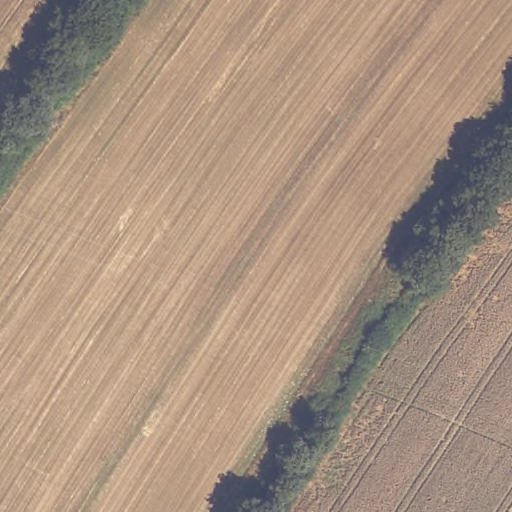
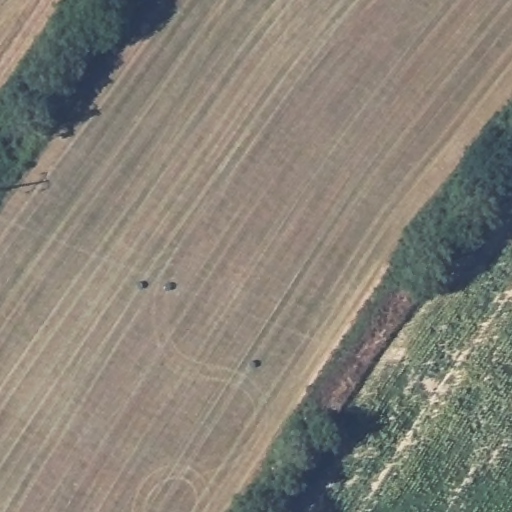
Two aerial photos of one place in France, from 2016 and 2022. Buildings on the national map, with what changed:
[]

